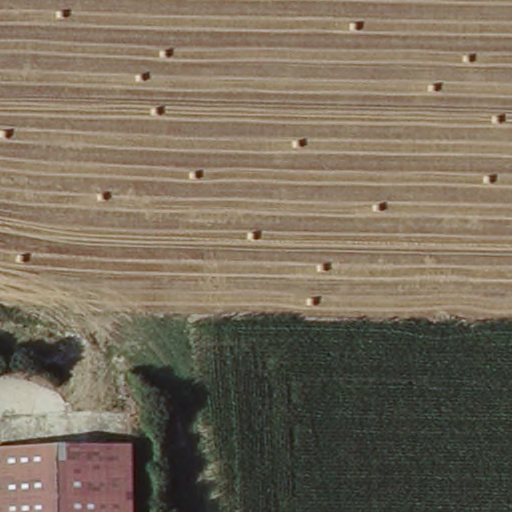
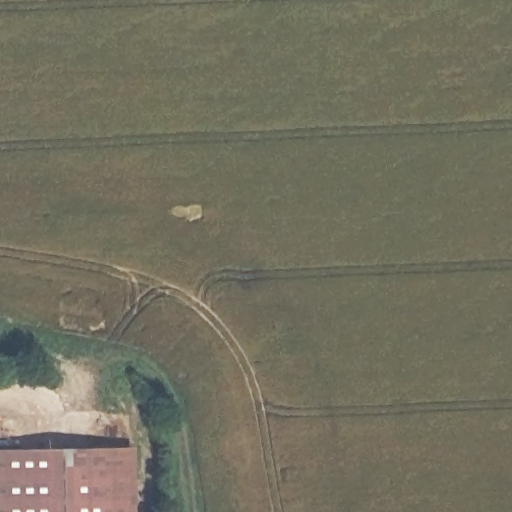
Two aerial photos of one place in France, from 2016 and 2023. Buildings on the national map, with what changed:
unchanged [(129,512),(0,512),(0,452),(128,448),(129,512)]

